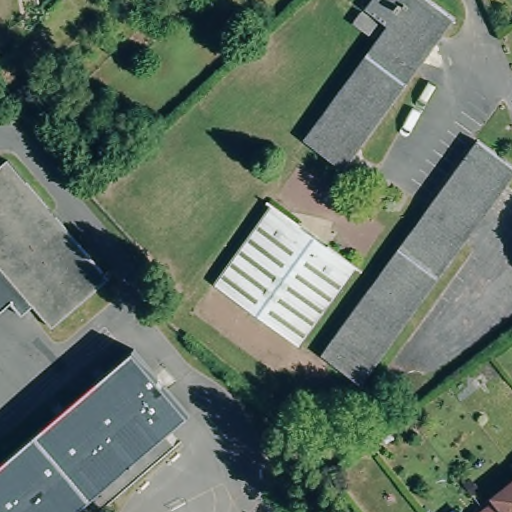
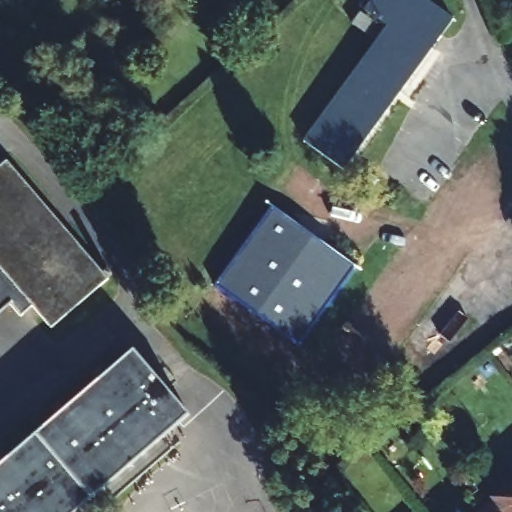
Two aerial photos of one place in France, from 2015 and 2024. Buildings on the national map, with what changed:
unchanged [(387,23),(364,6),(368,0),(434,0),(455,15),(443,31),(418,66),(359,147),(352,156),(332,183),(293,155),(315,125),(387,23)]
unchanged [(381,25),(372,37),(350,20),(359,9),(381,25)]
demolished [(473,136),(512,163),(512,166),(501,182),(464,235),(362,380),(329,357),(321,351),(473,136)]
unchanged [(106,270),(110,267),(115,272),(110,275),(54,325),(35,303),(22,314),(12,301),(0,312),(0,166),(10,157),(106,270)]
unchanged [(269,204),(350,260),(354,264),(297,344),(212,284),(269,204)]
unchanged [(183,418),(71,512),(0,512),(0,456),(127,349),(183,418)]
unchanged [(488,497),(485,494),(512,475),(512,512),(469,512),(475,507),(488,497)]

